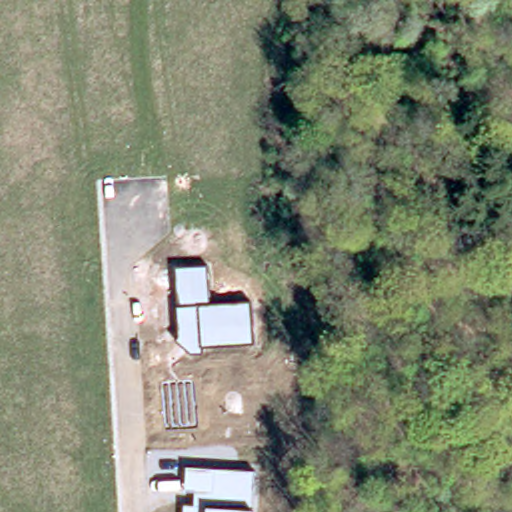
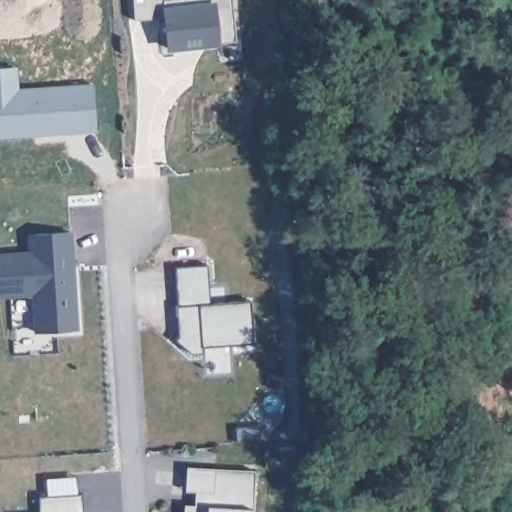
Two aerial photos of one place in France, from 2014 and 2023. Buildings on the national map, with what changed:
new [(171,31),(168,1),(162,1),(138,4),(138,0),(162,0),(168,0),(238,0),(238,5),(240,25),(221,27),(171,31)]
new [(0,121),(0,54),(21,52),(22,75),(97,70),(100,115),(47,119),(40,119),(6,121),(0,121)]
new [(28,235),(72,232),(80,330),(34,332),(32,295),(0,297),(0,251),(28,249),(28,235)]
unchanged [(207,267),(210,305),(251,301),(253,341),(203,347),(204,355),(195,355),(177,341),(180,335),(176,270),(207,267)]
unchanged [(255,473),(253,512),(182,512),(182,505),(192,504),(192,491),(183,490),(185,469),(255,473)]
new [(40,496),(84,493),(84,495),(85,512),(41,512),(40,496)]

